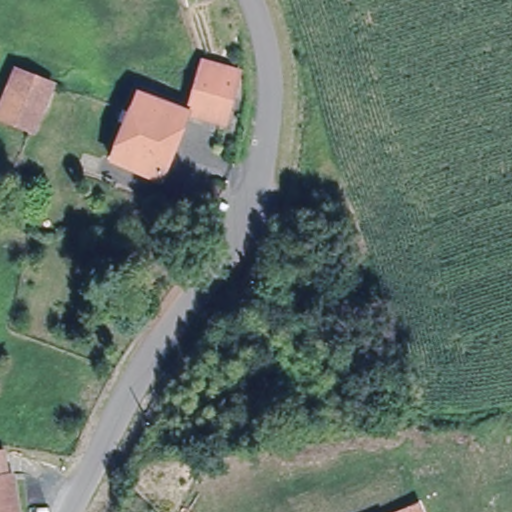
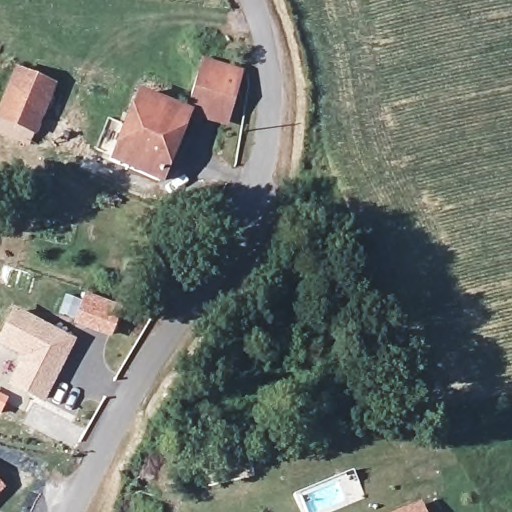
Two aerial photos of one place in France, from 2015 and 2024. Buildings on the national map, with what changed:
unchanged [(222,122),(187,111),(206,58),(241,72),(222,122)]
unchanged [(15,68),(51,81),(37,127),(1,115),(15,68)]
unchanged [(165,178),(117,161),(131,126),(122,123),(126,111),(135,113),(143,96),(187,111),(165,178)]
new [(121,308),(112,339),(73,325),(83,294),(121,308)]
new [(7,386),(21,358),(0,347),(0,333),(13,308),(76,341),(44,405),(7,386)]
demolished [(17,512),(0,512),(0,478),(10,476),(17,512)]
new [(0,492),(0,481),(5,486),(0,492)]
unchanged [(423,512),(406,512),(420,506),(423,512)]

